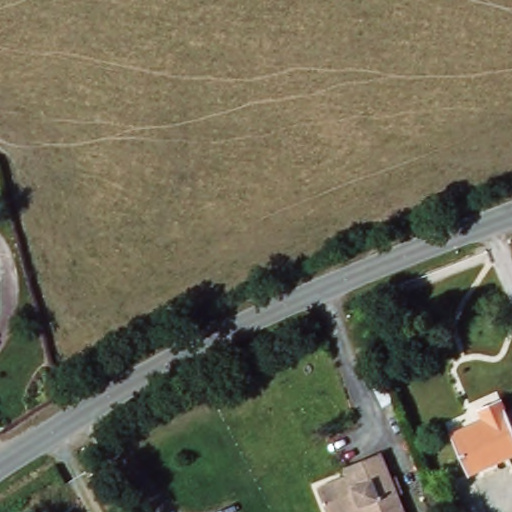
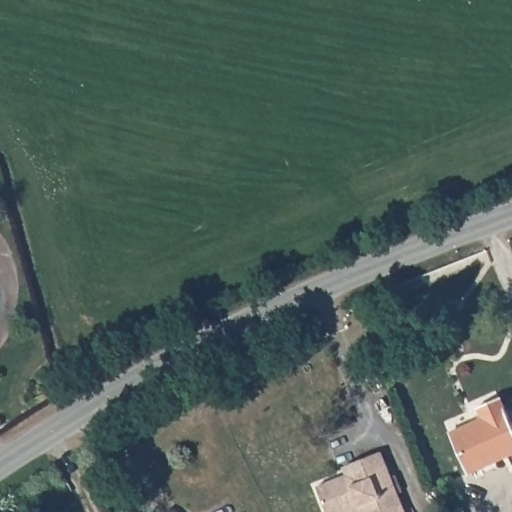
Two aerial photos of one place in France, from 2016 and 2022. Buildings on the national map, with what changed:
unchanged [(480,405),(501,395),(512,422),(512,459),(472,477),(453,437),(486,420),(480,405)]
unchanged [(348,475),(345,467),(382,450),(410,512),(331,512),(320,488),(348,475)]

